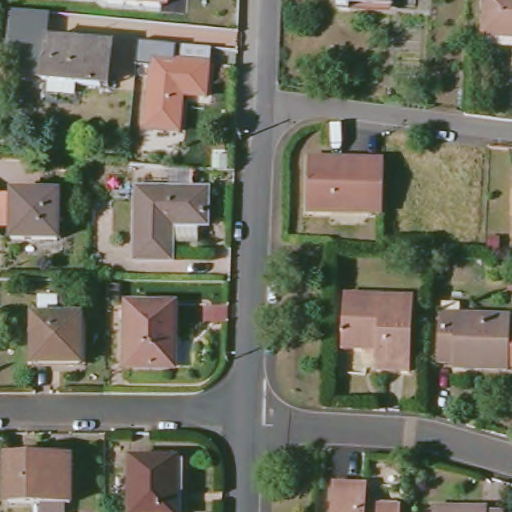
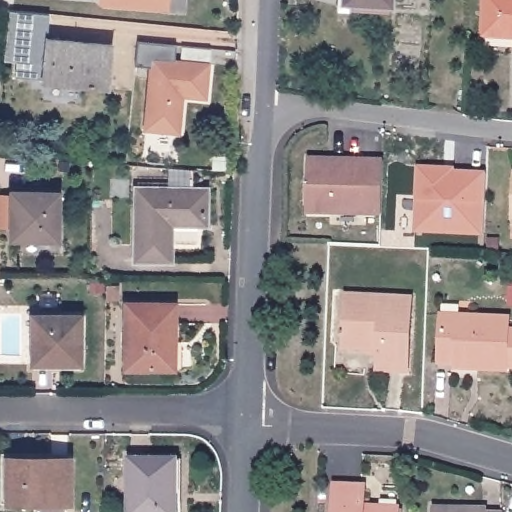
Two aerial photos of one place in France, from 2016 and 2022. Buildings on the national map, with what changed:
unchanged [(100,7),(101,0),(173,0),(172,12),(100,7)]
unchanged [(348,0),(391,0),(390,7),(348,5),(348,0)]
unchanged [(482,37),(485,0),(512,0),(512,38),(482,37)]
unchanged [(109,89),(102,89),(45,82),(48,41),(106,47),(112,47),(109,89)]
unchanged [(209,102),(186,100),(182,136),(145,134),(150,59),(212,64),(209,102)]
unchanged [(380,214),(362,214),(362,209),(330,207),(330,212),(305,211),(306,159),(382,161),(380,214)]
new [(415,232),(417,167),(455,168),(455,171),(486,171),(484,236),(415,232)]
unchanged [(165,247),(165,262),(132,262),(132,190),(163,190),(164,178),(188,179),(188,190),(202,191),(202,227),(195,228),(195,247),(165,247)]
unchanged [(0,228),(0,198),(17,199),(17,195),(64,195),(62,241),(17,241),(17,228),(0,228)]
unchanged [(405,368),(375,367),(377,347),(342,345),(344,297),(345,290),(374,291),(410,293),(405,368)]
unchanged [(127,306),(176,307),(175,340),(170,341),(170,370),(126,369),(127,306)]
unchanged [(505,368),(505,371),(477,371),(477,366),(437,364),(440,316),(507,318),(507,330),(512,330),(512,369),(505,368)]
unchanged [(33,366),(33,317),(82,317),(82,366),(33,366)]
unchanged [(130,459),(173,460),(173,501),(175,502),(175,512),(130,512),(130,459)]
unchanged [(9,460),(70,461),(70,504),(9,504),(9,460)]
unchanged [(333,485),(364,486),(363,506),(397,508),(397,512),(332,512),(333,485)]
unchanged [(433,509),(462,510),(461,512),(433,512),(433,509)]

